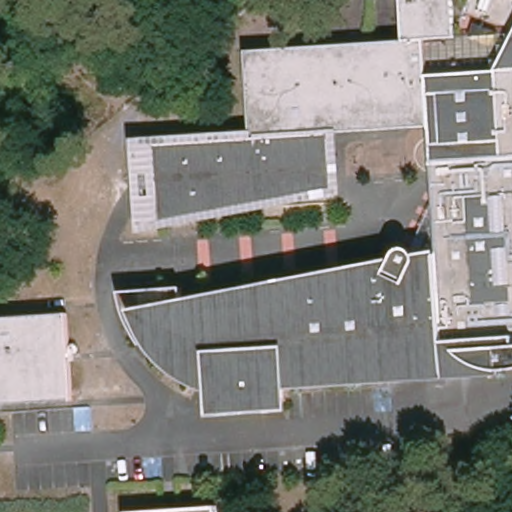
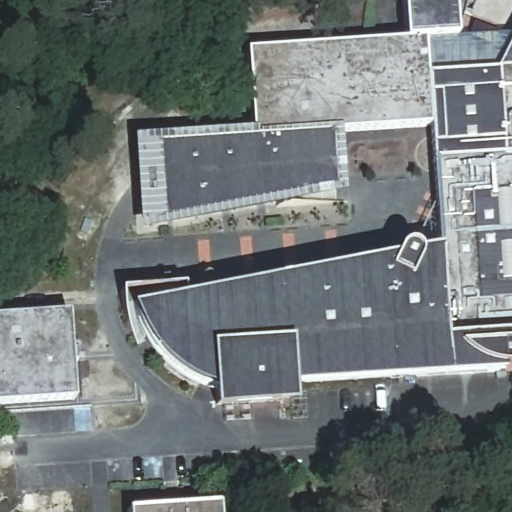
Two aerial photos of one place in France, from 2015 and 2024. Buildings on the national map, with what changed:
unchanged [(281,202),(280,202),(149,225),(142,147),(141,137),(188,134),(188,144),(251,141),(245,53),(405,44),(402,0),(453,0),(455,40),(462,39),(469,38),(473,26),(497,34),(496,37),(512,36),(512,370),(292,385),(292,401),(225,405),(224,395),(224,383),(218,380),(195,371),(173,356),(155,338),(147,343),(135,307),(188,296),(283,280),(284,290),(393,270),(400,256),(405,251),(410,249),(435,252),(428,128),(331,134),(334,192),(334,196),(335,206),(281,209),(281,202)]
unchanged [(187,288),(188,296),(135,307),(147,343),(142,346),(134,333),(128,318),(124,298),(125,293),(187,288)]
unchanged [(71,317),(76,404),(0,409),(0,321),(71,317)]
unchanged [(218,506),(218,512),(135,512),(218,506)]

